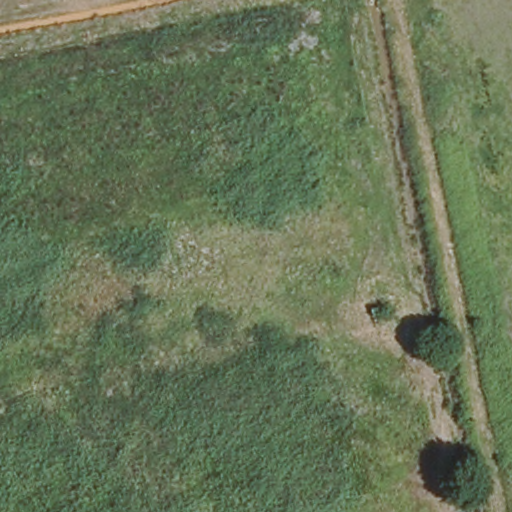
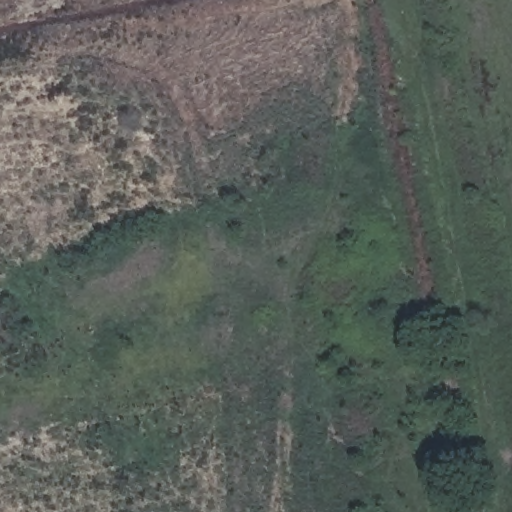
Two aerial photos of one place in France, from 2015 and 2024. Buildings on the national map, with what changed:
unchanged [(386,327),(367,332),(363,318),(382,313),(386,327)]

